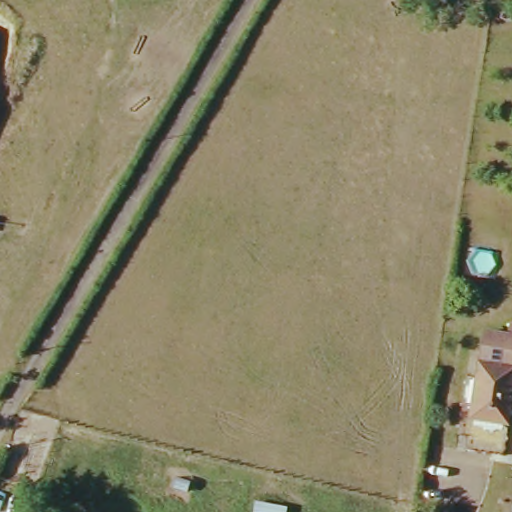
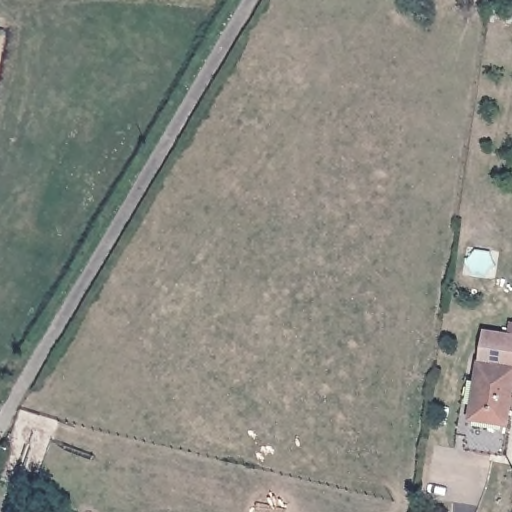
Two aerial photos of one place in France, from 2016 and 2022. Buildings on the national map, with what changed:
unchanged [(462,445),(477,358),(480,359),(485,327),(512,332),(512,388),(502,451),(462,445)]

